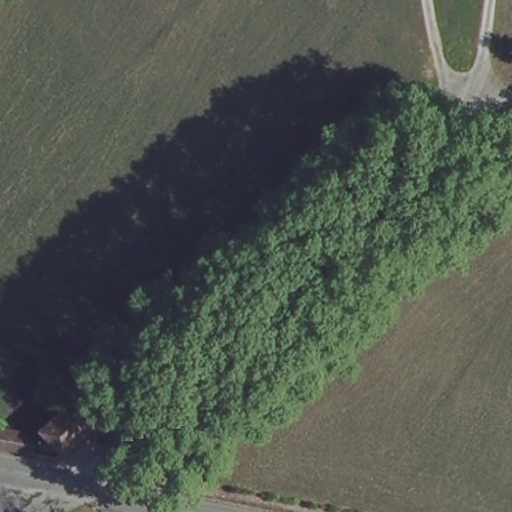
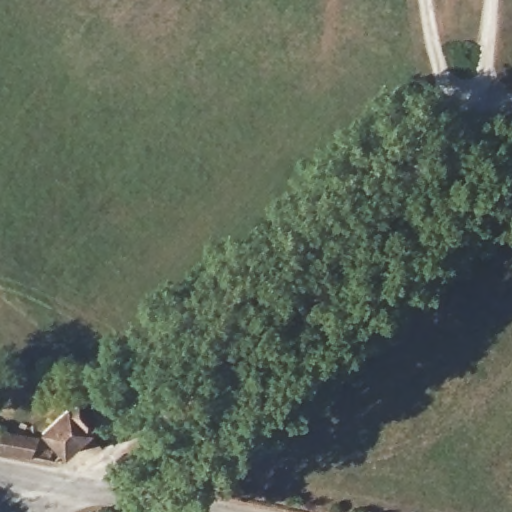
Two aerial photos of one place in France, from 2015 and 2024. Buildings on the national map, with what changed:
unchanged [(71,413),(96,390),(100,390),(116,408),(113,412),(90,434),(71,413)]
unchanged [(75,448),(21,437),(28,419),(65,425),(63,429),(90,434),(75,448)]

